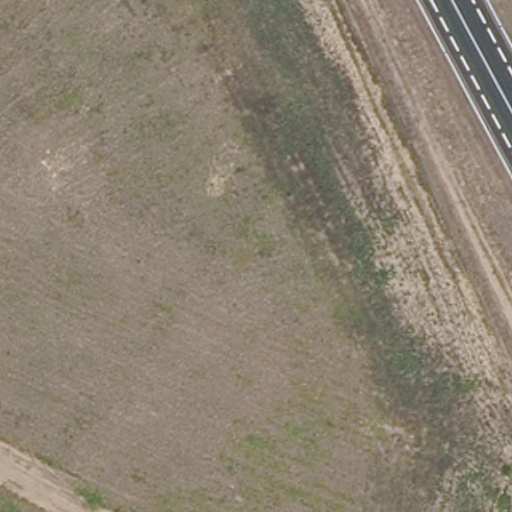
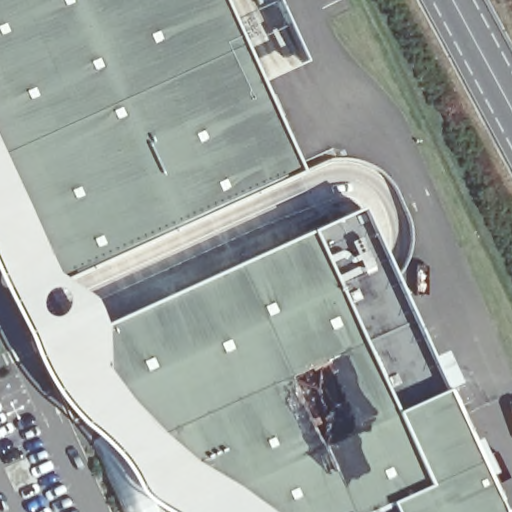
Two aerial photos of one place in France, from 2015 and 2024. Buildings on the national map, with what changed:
new [(54,274),(35,232),(1,158),(0,156),(0,0),(222,0),(299,172),(62,282),(54,274)]
new [(35,232),(54,274),(62,282),(91,300),(103,328),(105,372),(128,402),(150,427),(189,461),(208,473),(263,512),(165,512),(164,512),(146,500),(138,491),(127,470),(115,453),(86,427),(66,407),(52,386),(36,358),(27,336),(8,297),(0,279),(0,156),(1,158),(35,232)]
new [(208,473),(189,461),(150,427),(128,402),(105,372),(103,328),(361,210),(499,512),(263,512),(208,473)]

